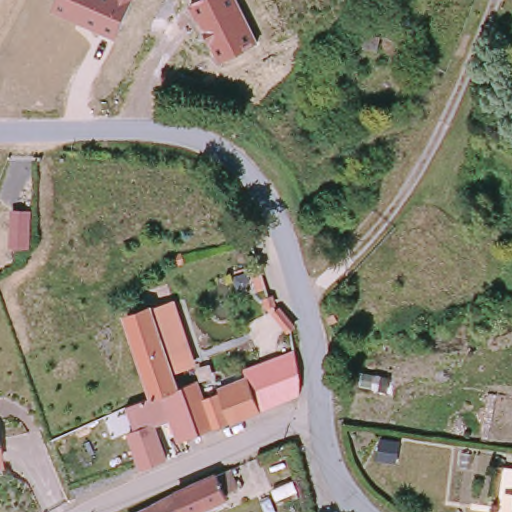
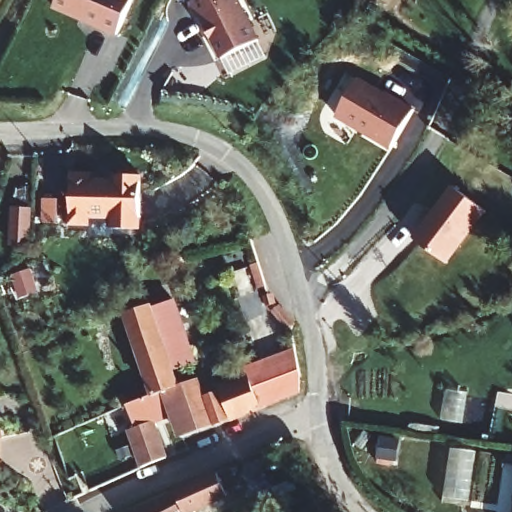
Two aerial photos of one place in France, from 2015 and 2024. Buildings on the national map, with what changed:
unchanged [(117,38),(53,11),(57,0),(134,0),(117,38)]
unchanged [(197,19),(190,3),(197,0),(240,0),(260,41),(221,60),(201,18),(197,19)]
new [(416,110),(391,151),(334,118),(359,76),(416,110)]
new [(86,158),(86,165),(109,164),(109,158),(136,157),(137,211),(110,212),(110,200),(86,201),(86,208),(68,209),(66,159),(86,158)]
new [(488,211),(449,264),(414,238),(453,184),(488,211)]
new [(17,197),(34,199),(30,234),(13,232),(17,197)]
unchanged [(179,301),(198,362),(181,369),(185,383),(157,393),(130,318),(179,301)]
unchanged [(252,378),(249,365),(295,350),(299,372),(300,393),(229,419),(221,388),(252,378)]
unchanged [(128,404),(157,393),(185,383),(187,383),(200,378),(214,423),(220,422),(226,420),(231,435),(205,444),(188,450),(173,410),(154,417),(168,457),(162,459),(155,462),(148,460),(141,457),(130,418),(133,417),(128,404)]
unchanged [(229,464),(239,483),(228,489),(230,492),(185,512),(129,512),(177,486),(229,464)]

